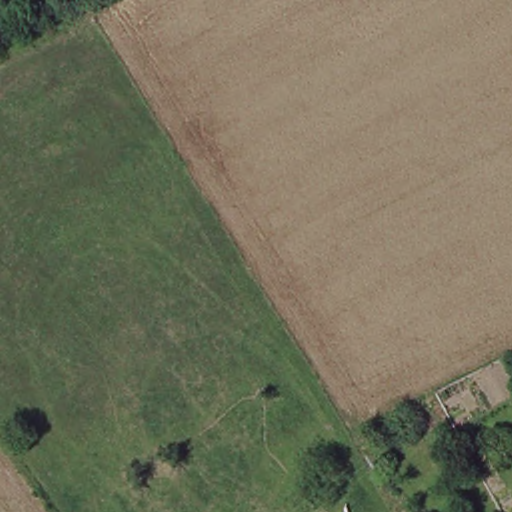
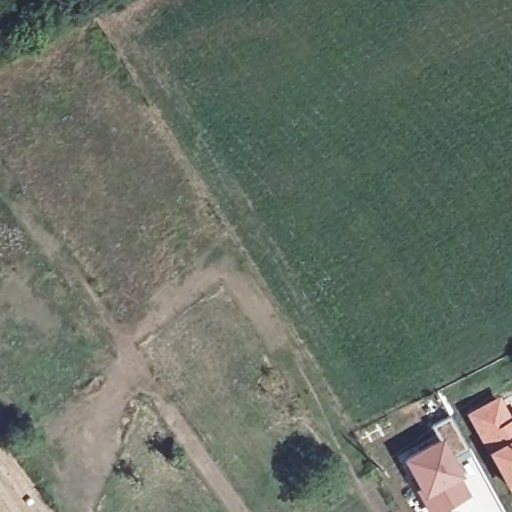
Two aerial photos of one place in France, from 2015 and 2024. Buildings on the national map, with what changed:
new [(498,393),(510,413),(512,412),(512,489),(508,491),(465,411),(498,393)]
new [(450,457),(457,472),(456,474),(466,493),(432,512),(412,477),(415,475),(405,457),(439,439),(430,423),(449,413),(468,447),(450,457)]

